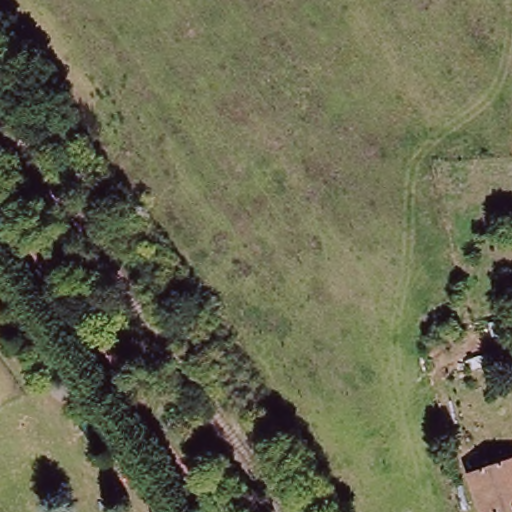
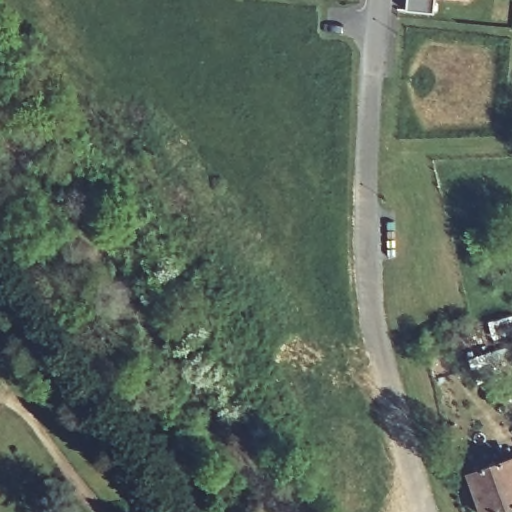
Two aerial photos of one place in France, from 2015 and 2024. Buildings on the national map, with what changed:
new [(407,10),(408,0),(436,0),(435,13),(407,10)]
unchanged [(473,470),(512,457),(512,507),(497,512),(487,512),(473,470)]

